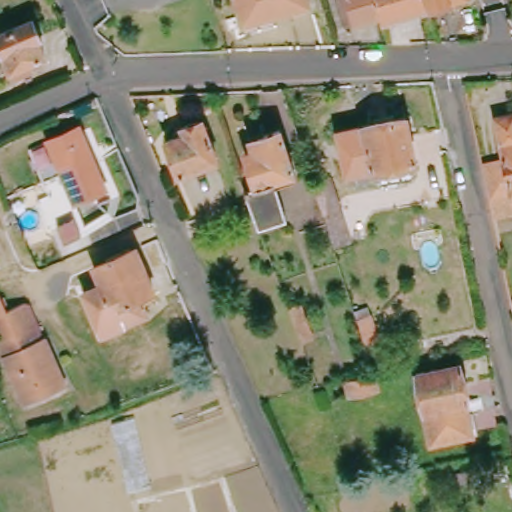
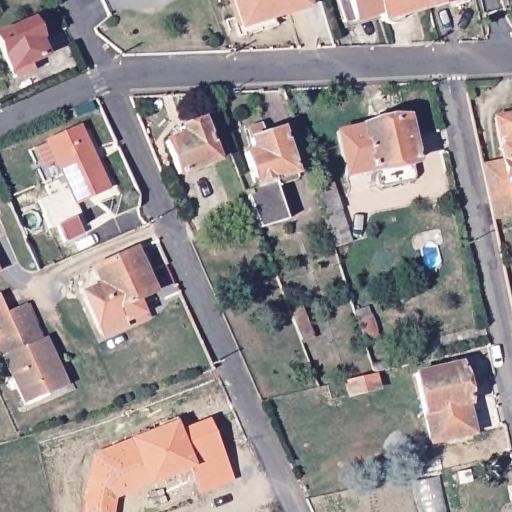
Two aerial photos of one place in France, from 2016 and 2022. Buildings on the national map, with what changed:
unchanged [(228,0),(305,0),(307,9),(235,27),(228,0)]
unchanged [(375,0),(379,17),(350,23),(349,21),(339,23),(334,0),(375,0)]
unchanged [(375,0),(420,0),(423,11),(380,21),(379,17),(375,0)]
unchanged [(447,0),(447,4),(426,9),(424,0),(447,0)]
unchanged [(0,54),(0,35),(28,25),(37,44),(33,45),(41,63),(8,75),(0,54)]
unchanged [(485,202),(477,162),(498,159),(490,116),(512,111),(512,194),(507,195),(508,197),(511,212),(488,216),(485,202)]
unchanged [(405,181),(376,187),(371,184),(368,170),(366,171),(356,126),(398,117),(408,162),(405,162),(409,177),(405,181)]
unchanged [(177,179),(165,145),(183,140),(181,134),(202,127),(216,165),(177,179)]
unchanged [(75,131),(98,194),(99,196),(72,206),(47,142),(75,131)]
unchanged [(247,189),(239,157),(250,154),(247,143),(279,135),(290,175),(272,180),(281,222),(250,231),(235,192),(247,189)]
unchanged [(329,185),(350,247),(334,252),(320,212),(313,190),(329,185)]
unchanged [(115,324),(94,271),(133,255),(152,298),(131,306),(135,316),(115,324)]
unchanged [(94,271),(115,324),(118,332),(99,339),(80,295),(98,288),(92,272),(94,271)]
unchanged [(20,406),(0,362),(0,314),(0,316),(18,307),(33,342),(38,340),(60,388),(20,406)]
unchanged [(354,318),(366,314),(376,347),(365,351),(354,318)]
unchanged [(430,446),(416,378),(459,370),(467,410),(459,411),(463,440),(430,446)]
unchanged [(378,392),(348,400),(344,383),(373,377),(378,392)]
new [(185,425),(211,417),(236,482),(200,493),(192,471),(119,498),(116,512),(83,512),(93,450),(177,415),(185,425)]

